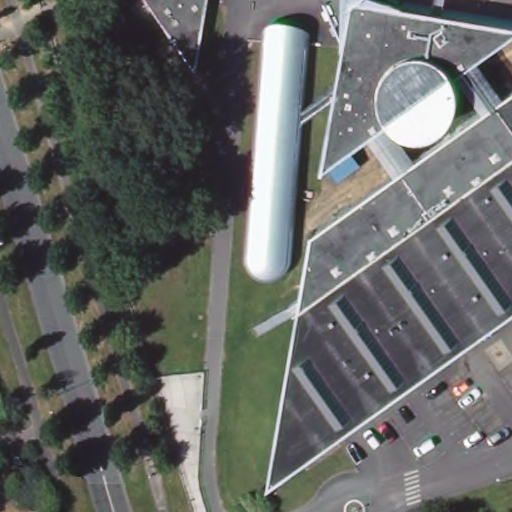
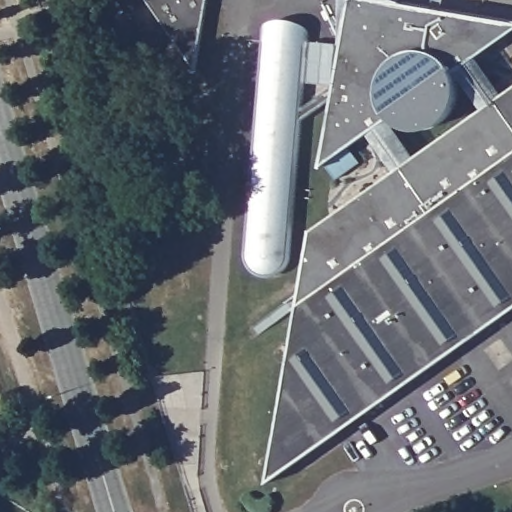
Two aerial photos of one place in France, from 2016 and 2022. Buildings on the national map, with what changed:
unchanged [(198,74),(142,0),(212,0),(198,74)]
unchanged [(286,128),(274,261),(252,260),(271,40),(294,42),(300,42),(296,108),(333,83),(347,0),(386,0),(507,20),(512,22),(512,28),(479,52),(469,59),(494,97),(512,85),(512,308),(264,482),(308,229),(397,166),(372,129),(319,166),(330,98),(294,123),(286,128)]
unchanged [(264,40),(271,40),(252,260),(274,261),(286,128),(294,123),(288,197),(286,211),(285,222),(284,235),(283,247),(283,260),(282,268),(279,271),(277,273),(274,275),(269,278),(263,279),(258,278),(255,276),(251,272),(248,267),(247,263),(264,40)]

